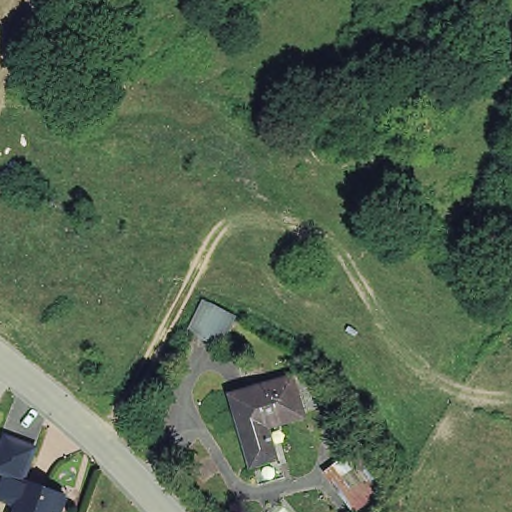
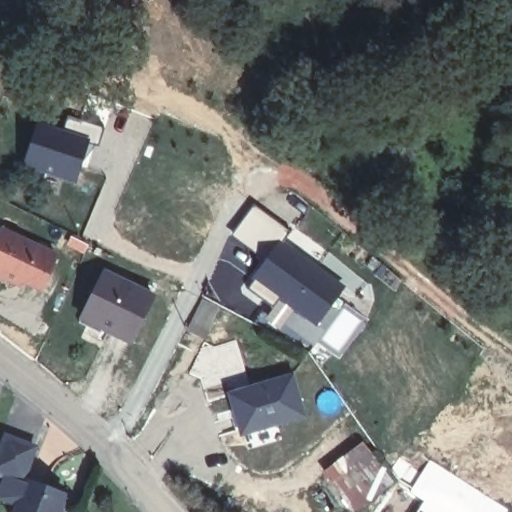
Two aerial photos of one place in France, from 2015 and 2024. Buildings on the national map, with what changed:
new [(89,142),(76,188),(22,170),(35,126),(89,142)]
new [(256,201),(293,229),(284,241),(343,285),(317,320),(282,295),(275,304),(249,286),(272,256),(235,229),(256,201)]
new [(59,253),(43,285),(25,277),(23,281),(0,270),(0,234),(4,227),(59,253)]
new [(81,321),(105,268),(154,294),(131,346),(81,321)]
unchanged [(205,295),(238,313),(224,338),(192,321),(205,295)]
unchanged [(308,372),(328,406),(298,415),(287,378),(308,372)]
unchanged [(247,466),(238,432),(228,395),(287,378),(298,415),(263,426),(272,459),(247,466)]
unchanged [(7,428),(38,439),(27,475),(0,464),(0,443),(7,428)]
unchanged [(343,512),(328,492),(338,484),(329,473),(363,448),(391,485),(359,510),(359,511),(357,512),(343,512)]
new [(401,456),(420,471),(429,459),(507,510),(505,512),(415,512),(422,502),(408,492),(411,486),(390,469),(401,456)]
unchanged [(60,512),(18,512),(33,475),(69,489),(60,512)]

